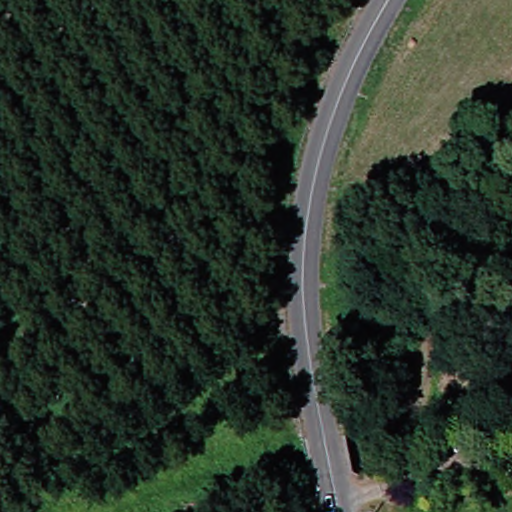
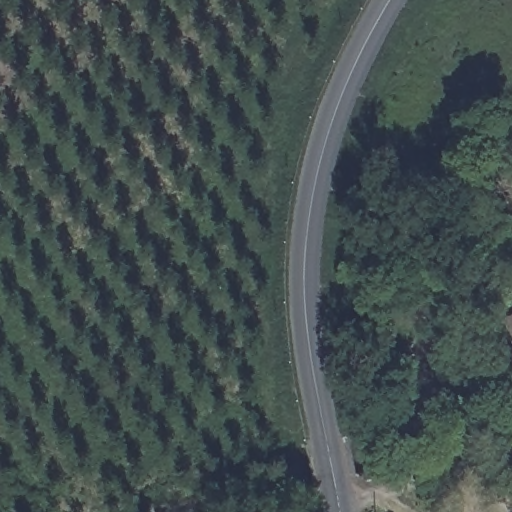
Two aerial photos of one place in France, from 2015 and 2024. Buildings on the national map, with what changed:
unchanged [(508,321),(512,319),(512,332),(508,321)]

